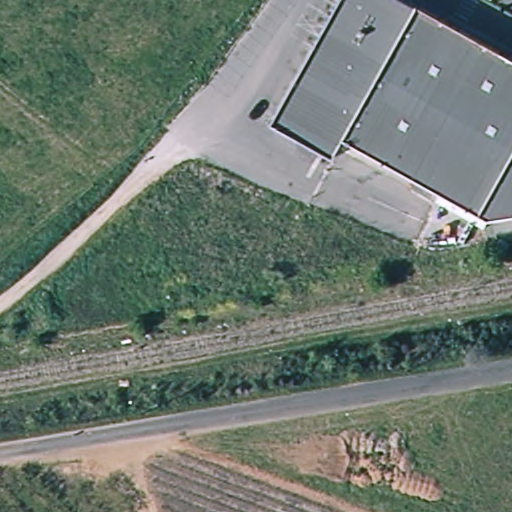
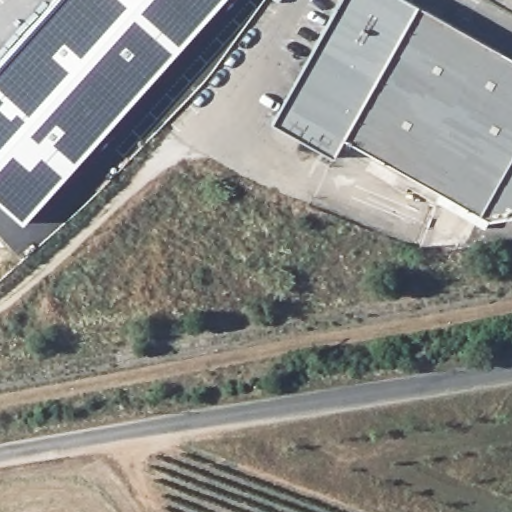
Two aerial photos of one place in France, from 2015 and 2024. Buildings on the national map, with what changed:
new [(0,202),(0,61),(55,0),(222,0),(23,223),(0,202)]
unchanged [(490,222),(353,143),(339,164),(276,129),(347,0),(404,0),(512,59),(512,218),(490,222)]

